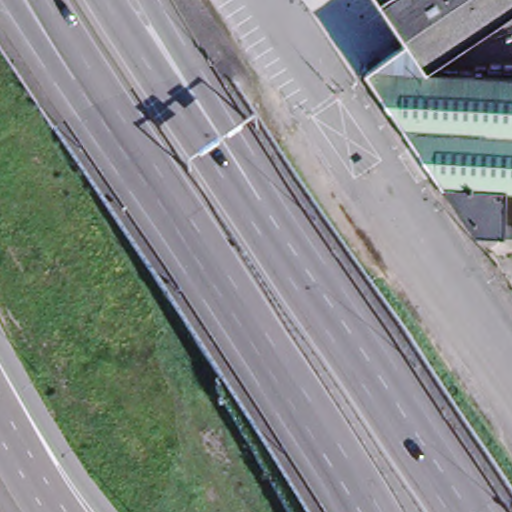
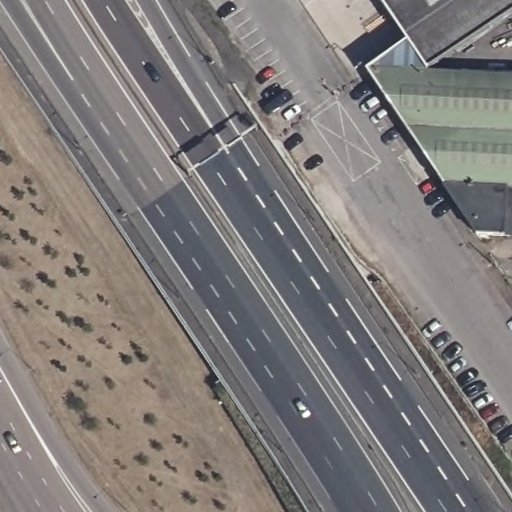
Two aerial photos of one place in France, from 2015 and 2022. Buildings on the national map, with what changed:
unchanged [(512,0),(512,14),(426,72),(408,44),(378,0),(512,0)]
unchanged [(408,44),(426,72),(428,75),(512,79),(512,236),(476,235),(367,72),(408,44)]

